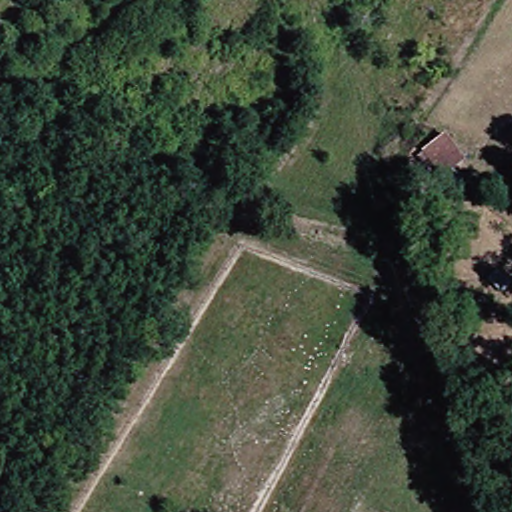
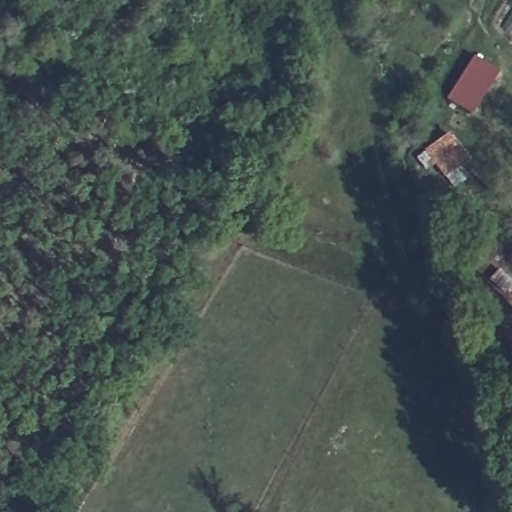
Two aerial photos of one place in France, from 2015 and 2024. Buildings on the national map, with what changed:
new [(472,56),(497,73),(470,116),(445,100),(472,56)]
unchanged [(388,168),(442,134),(477,190),(422,226),(388,168)]

